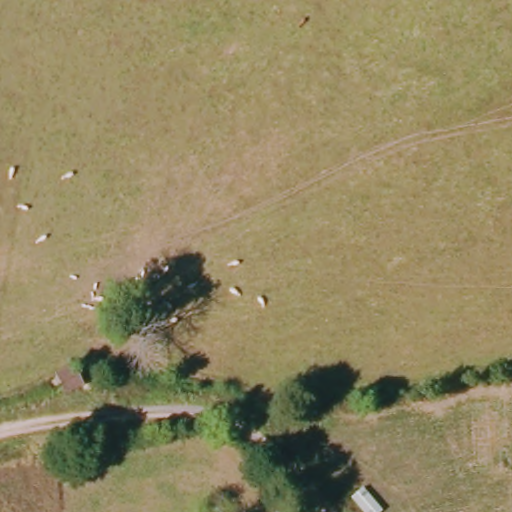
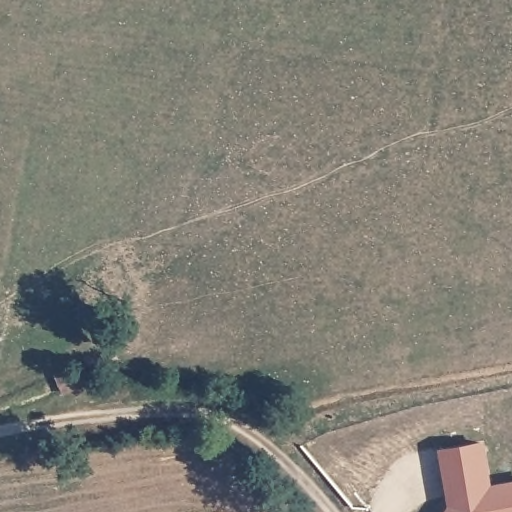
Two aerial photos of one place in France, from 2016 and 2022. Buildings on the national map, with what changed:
unchanged [(82,385),(64,393),(56,375),(74,366),(82,385)]
new [(440,448),(485,440),(493,484),(512,481),(512,512),(446,512),(450,506),(440,448)]

